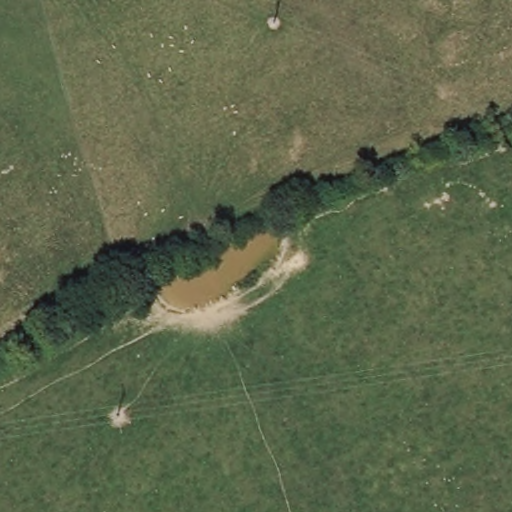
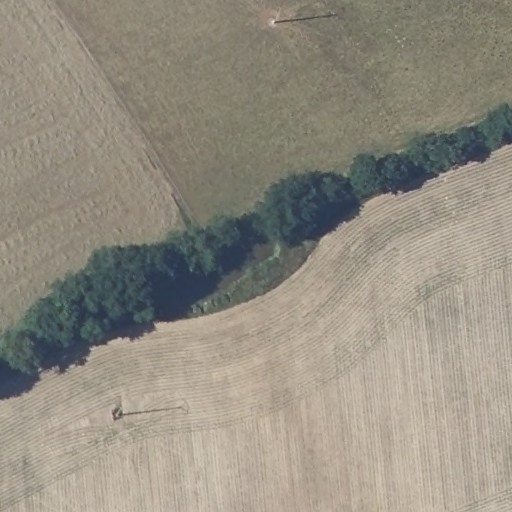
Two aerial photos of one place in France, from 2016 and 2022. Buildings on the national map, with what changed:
[]

